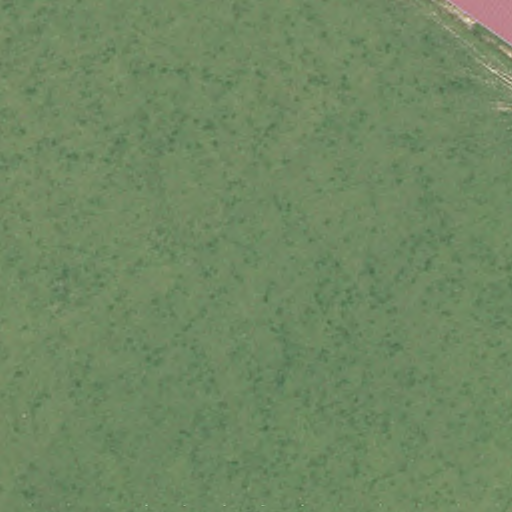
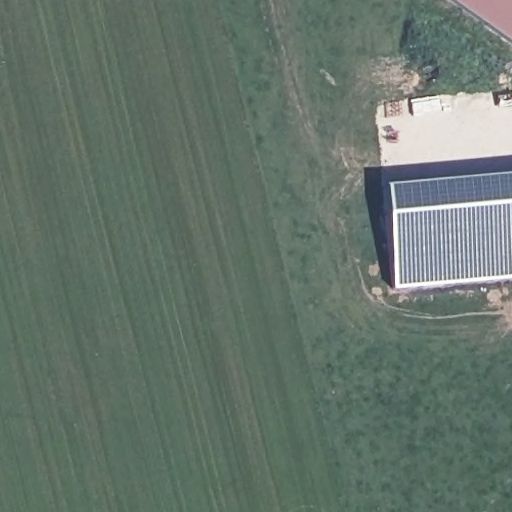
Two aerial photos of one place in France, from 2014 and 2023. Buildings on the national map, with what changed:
unchanged [(447,0),(512,0),(512,46),(447,0)]
new [(392,289),(383,189),(512,177),(512,279),(392,289)]

